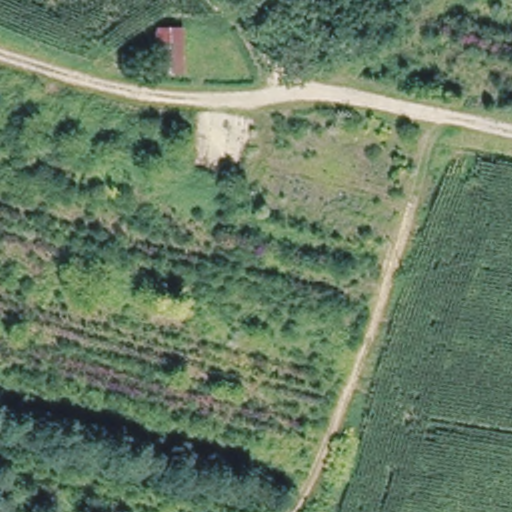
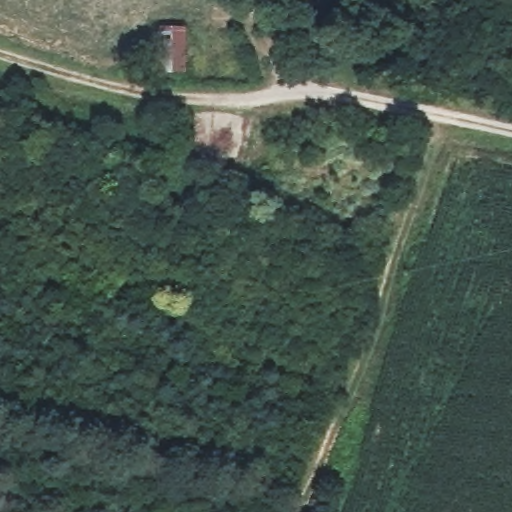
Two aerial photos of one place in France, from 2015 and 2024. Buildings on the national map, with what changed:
unchanged [(185,76),(149,77),(150,27),(184,29),(185,76)]

